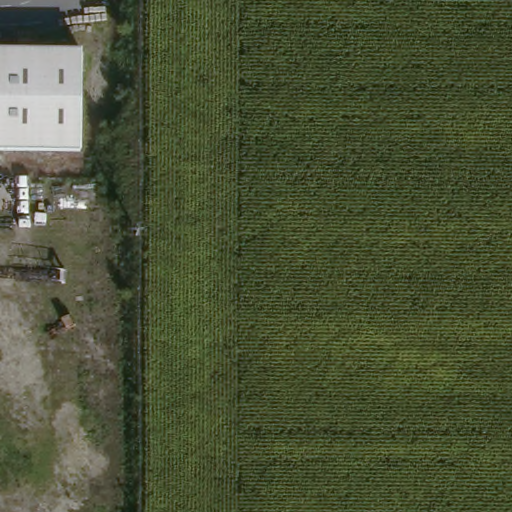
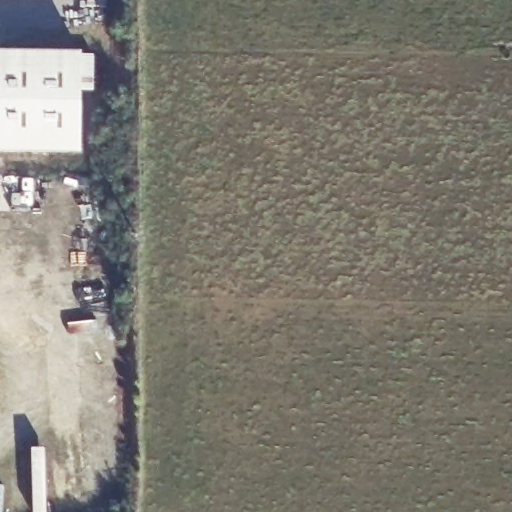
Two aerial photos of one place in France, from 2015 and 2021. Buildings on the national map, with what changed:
unchanged [(11,56),(74,58),(72,124),(71,158),(0,156),(0,56),(11,56)]

